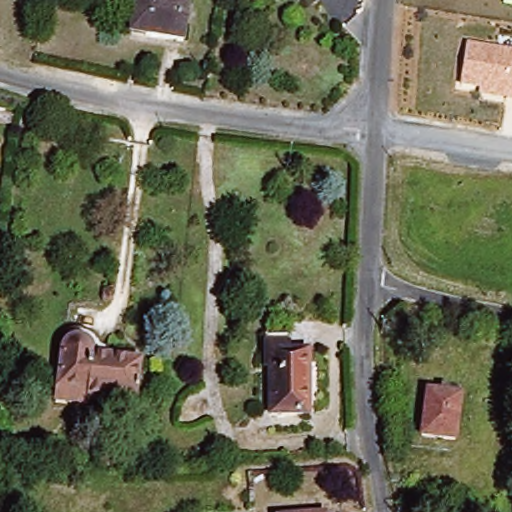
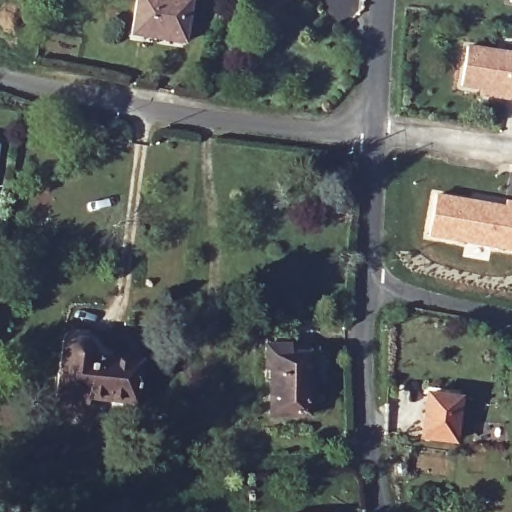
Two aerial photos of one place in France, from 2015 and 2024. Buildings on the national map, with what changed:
unchanged [(193,0),(186,46),(133,39),(138,0),(193,0)]
unchanged [(480,90),(459,87),(465,46),(512,53),(512,102),(479,97),(480,90)]
new [(503,204),(504,199),(512,200),(512,251),(427,236),(436,192),(503,204)]
unchanged [(52,408),(54,388),(59,352),(65,349),(68,343),(74,337),(85,340),(90,345),(91,355),(141,365),(137,403),(89,396),(88,413),(52,408)]
unchanged [(284,340),(284,355),(306,355),(309,416),(268,417),(266,376),(260,376),(259,341),(284,340)]
unchanged [(454,440),(428,439),(429,395),(456,396),(454,440)]

